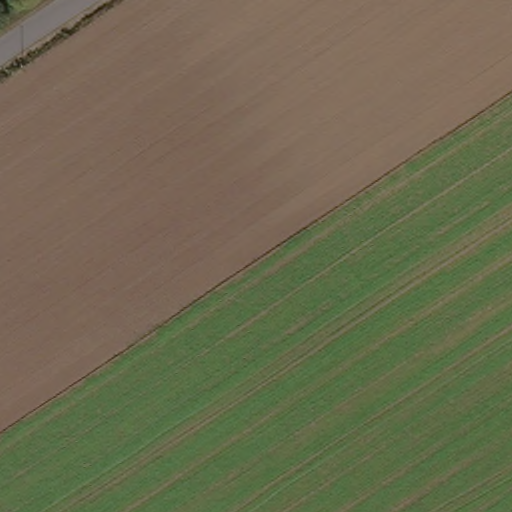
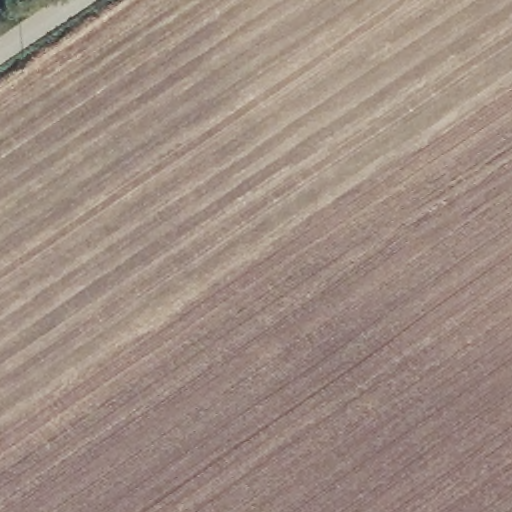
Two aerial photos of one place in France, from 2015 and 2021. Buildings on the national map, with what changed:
[]

